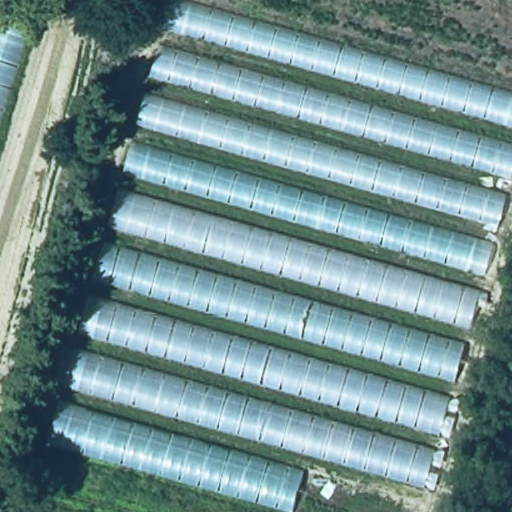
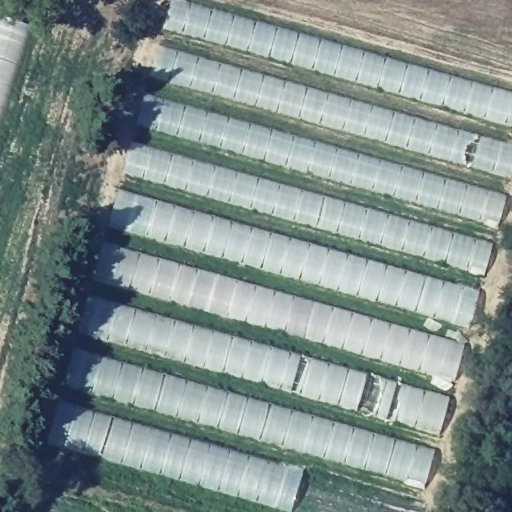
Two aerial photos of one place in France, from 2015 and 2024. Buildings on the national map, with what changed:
unchanged [(193,0),(512,91),(512,169),(420,503),(307,475),(297,512),(288,512),(46,444),(170,0),(193,0)]
unchanged [(0,120),(0,19),(29,29),(0,120)]

